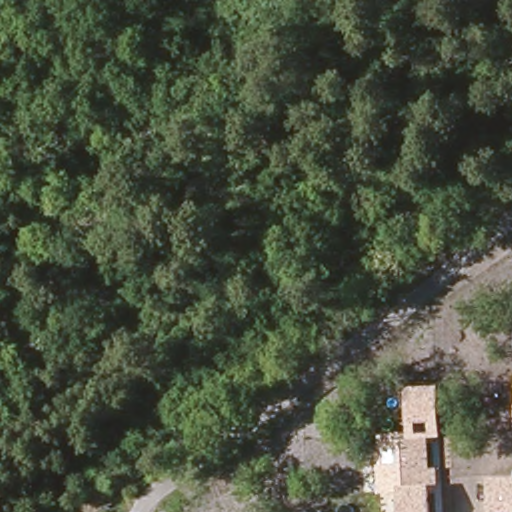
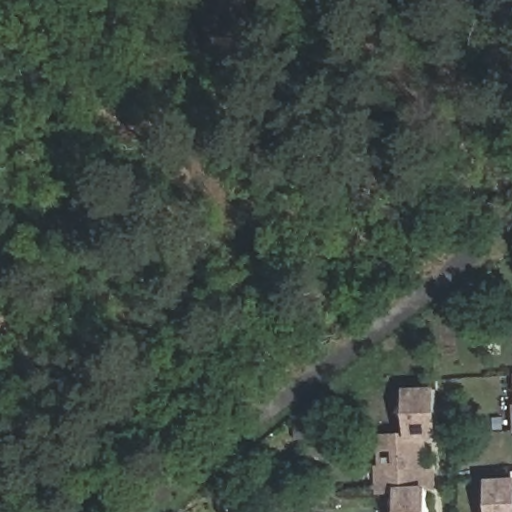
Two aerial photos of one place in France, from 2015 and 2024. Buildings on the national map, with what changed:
unchanged [(428,439),(429,465),(439,466),(440,483),(429,484),(430,512),(399,512),(398,491),(379,490),(378,432),(407,432),(407,387),(441,387),(442,438),(428,439)]
unchanged [(489,512),(487,479),(512,478),(512,512),(489,512)]

